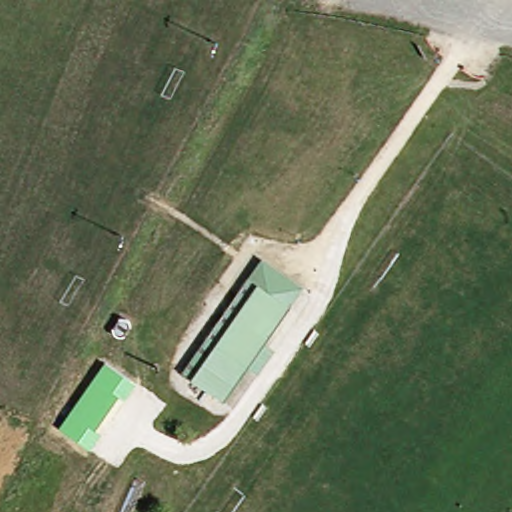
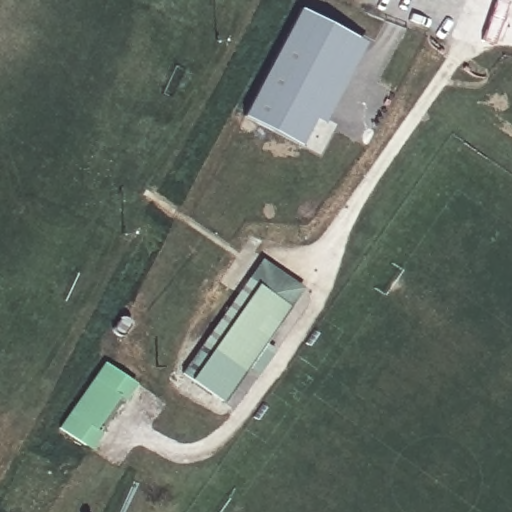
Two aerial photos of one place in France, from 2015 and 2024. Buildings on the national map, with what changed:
new [(326,120),(319,116),(305,143),(249,113),(307,5),(362,35),(362,36),(370,40),(326,120)]
unchanged [(262,260),(302,288),(290,306),(250,279),(262,260)]
unchanged [(246,371),(224,402),(184,375),(250,279),(290,306),(246,371)]
new [(135,383),(123,400),(119,397),(96,430),(101,433),(91,448),(59,427),(104,363),(135,383)]

